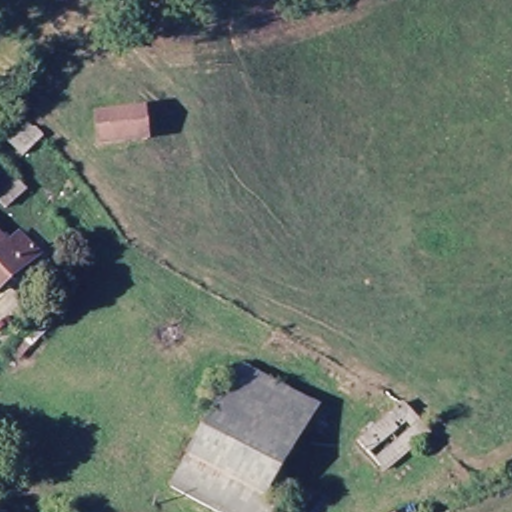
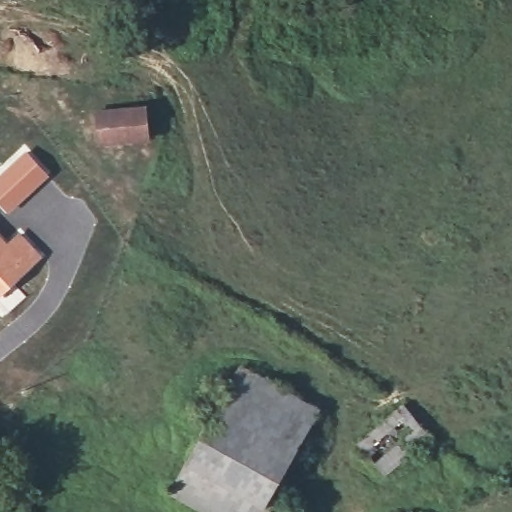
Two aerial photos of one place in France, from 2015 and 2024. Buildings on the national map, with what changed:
unchanged [(149,131),(99,140),(95,112),(144,106),(149,131)]
demolished [(29,154),(12,137),(35,110),(52,127),(29,154)]
new [(51,175),(10,213),(0,203),(0,175),(27,150),(51,175)]
demolished [(10,209),(0,198),(0,179),(6,172),(26,191),(10,209)]
unchanged [(22,237),(39,251),(0,296),(0,240),(11,250),(22,237)]
unchanged [(287,457),(212,420),(225,385),(230,373),(307,412),(298,433),(287,457)]
unchanged [(431,440),(383,474),(360,442),(408,407),(431,440)]
unchanged [(212,420),(287,457),(270,500),(266,508),(191,470),(212,420)]
unchanged [(191,470),(266,508),(270,500),(283,507),(281,512),(211,512),(176,495),(191,470)]

